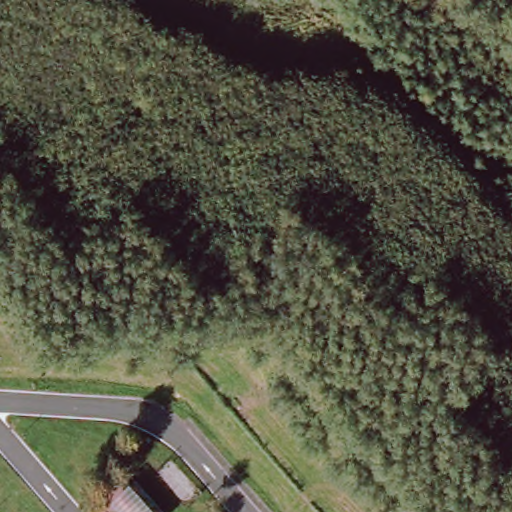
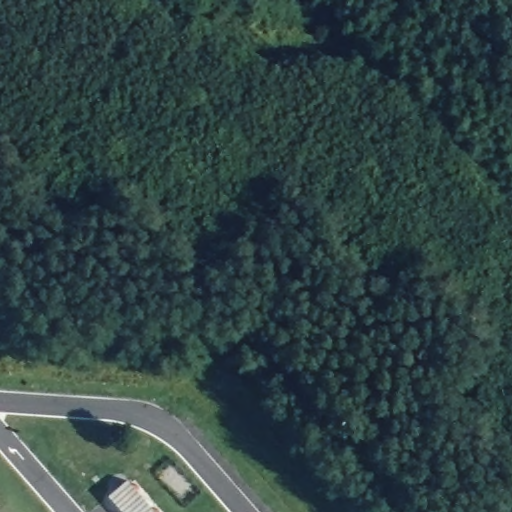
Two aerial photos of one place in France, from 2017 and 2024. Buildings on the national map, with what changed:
unchanged [(156,512),(124,512),(113,500),(131,483),(156,512)]

